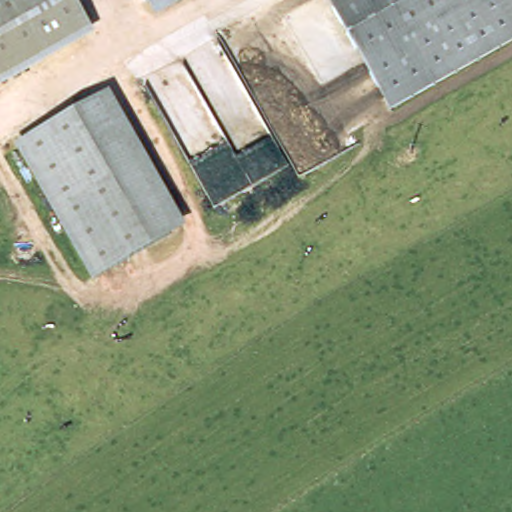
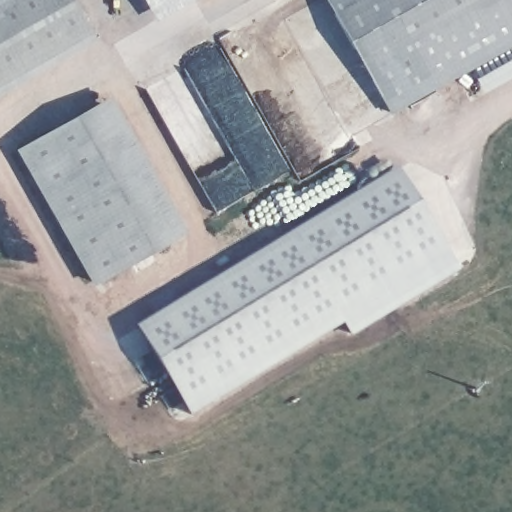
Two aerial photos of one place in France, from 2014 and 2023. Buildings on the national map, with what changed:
unchanged [(0,95),(0,0),(73,0),(95,39),(0,95)]
unchanged [(151,9),(146,0),(174,0),(152,11),(151,9)]
unchanged [(328,0),(512,0),(512,35),(382,103),(328,0)]
unchanged [(96,277),(81,249),(25,145),(105,102),(176,234),(140,253),(96,277)]
new [(458,269),(350,337),(342,324),(187,416),(133,327),(397,167),(458,269)]

